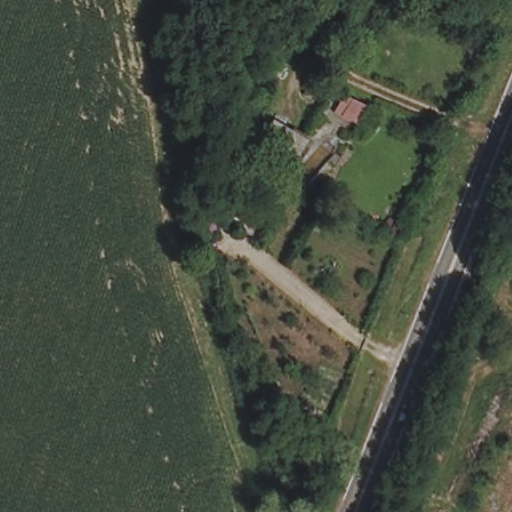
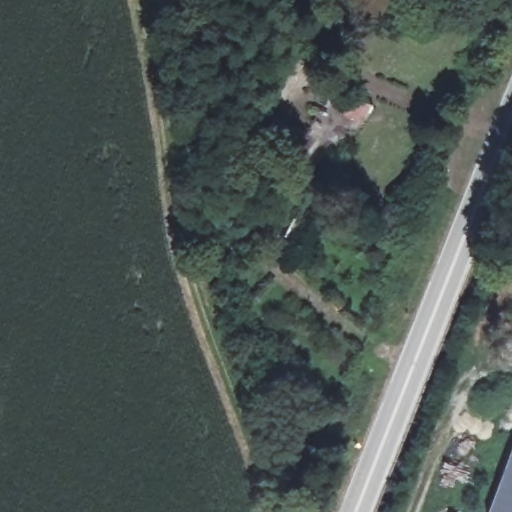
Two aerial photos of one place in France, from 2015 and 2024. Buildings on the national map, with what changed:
unchanged [(295,130),(280,157),(250,143),(264,117),(295,130)]
unchanged [(492,272),(480,302),(462,294),(473,265),(492,272)]
new [(512,449),(512,512),(488,512),(512,449)]
unchanged [(309,505),(320,512),(319,512),(305,512),(309,505)]

